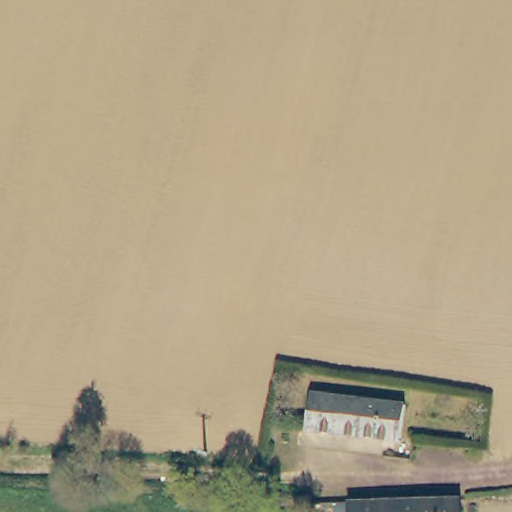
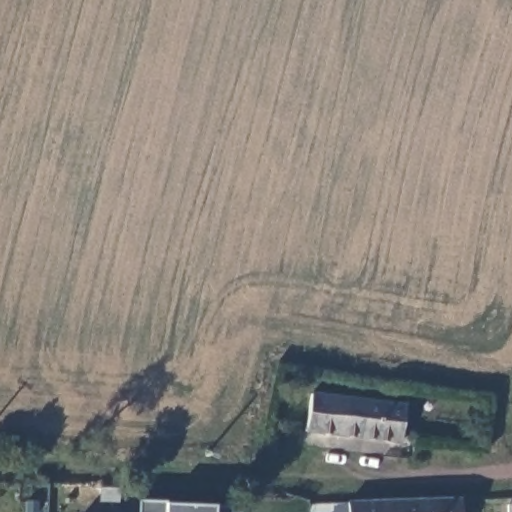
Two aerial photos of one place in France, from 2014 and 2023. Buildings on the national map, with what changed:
unchanged [(335,397),(398,406),(417,408),(410,449),(298,436),(299,427),(303,394),(335,397)]
unchanged [(461,497),(461,512),(348,512),(348,498),(397,498),(434,497),(461,497)]
new [(140,512),(141,502),(167,505),(217,507),(240,508),(240,512),(140,512)]

